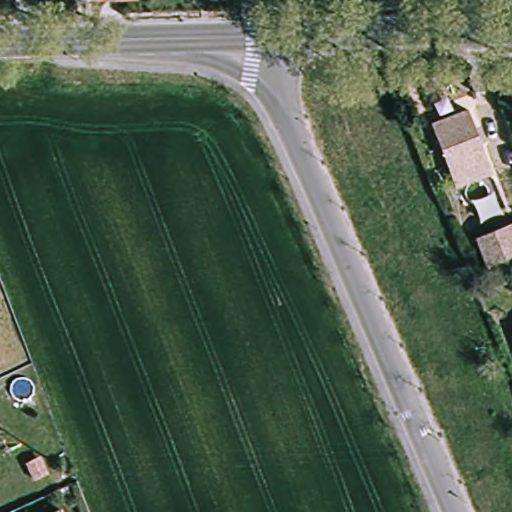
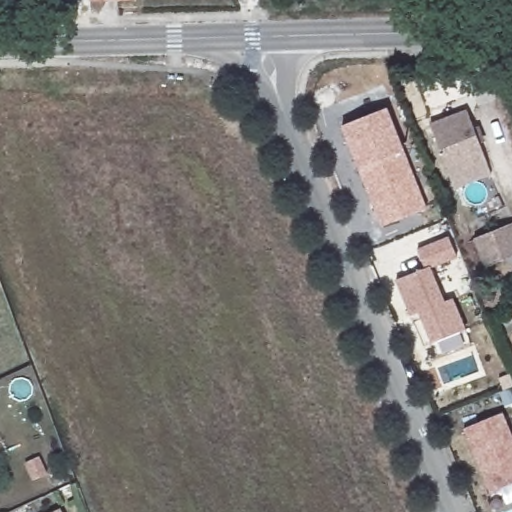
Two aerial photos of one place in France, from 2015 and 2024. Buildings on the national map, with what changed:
new [(383,226),(359,169),(342,127),(387,108),(405,150),(428,207),(383,226)]
unchanged [(490,174),(455,188),(430,125),(466,111),(490,174)]
unchanged [(512,254),(484,267),(474,240),(511,225),(512,227),(512,254)]
new [(424,269),(417,251),(447,238),(455,258),(429,269),(443,304),(451,301),(463,332),(430,346),(418,314),(410,317),(395,281),(424,269)]
new [(464,428),(502,412),(512,436),(512,484),(490,493),(464,428)]
unchanged [(61,510),(62,512),(55,512),(61,510)]

